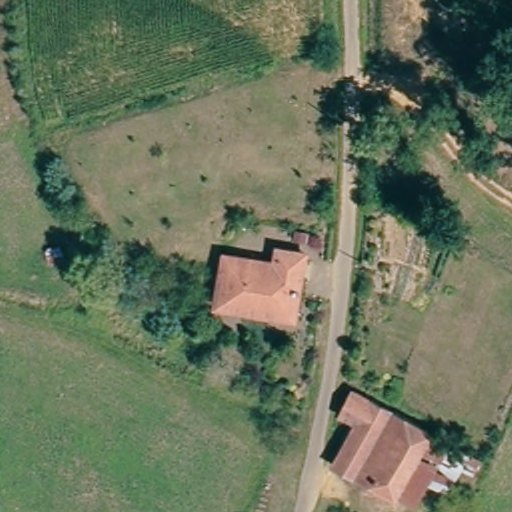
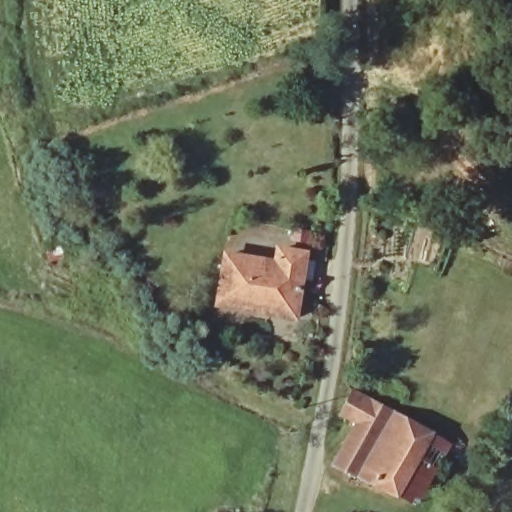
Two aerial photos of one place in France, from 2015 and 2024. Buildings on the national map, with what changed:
unchanged [(296,316),(221,306),(227,258),(275,267),(278,254),(306,258),(296,316)]
unchanged [(446,440),(410,504),(349,471),(368,429),(357,422),(367,399),(446,440)]

